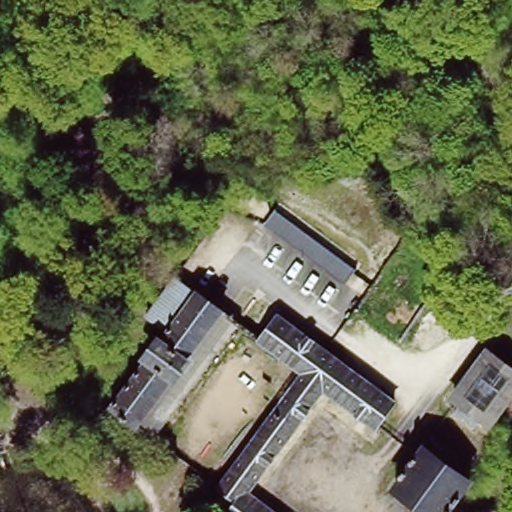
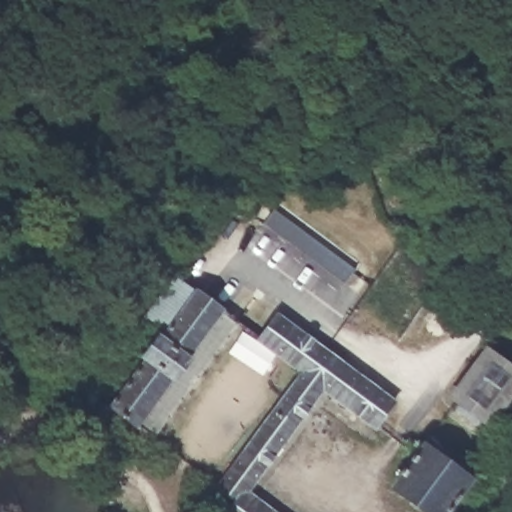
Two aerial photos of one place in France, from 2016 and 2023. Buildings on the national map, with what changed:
unchanged [(275,210),(355,270),(345,283),(265,224),(275,210)]
unchanged [(135,428),(108,408),(168,327),(150,312),(178,275),(197,288),(224,309),(135,428)]
unchanged [(420,340),(410,333),(428,305),(438,312),(420,340)]
unchanged [(242,322),(241,325),(152,442),(135,428),(224,309),(242,322)]
unchanged [(282,311),(397,397),(378,421),(328,382),(308,367),(265,333),(282,311)]
unchanged [(492,357),(497,349),(512,360),(512,400),(490,429),(458,405),(453,400),(489,355),(492,357)]
unchanged [(220,485),(308,367),(328,382),(248,489),(240,500),(220,485)]
unchanged [(452,512),(433,512),(398,485),(420,457),(425,450),(472,485),(452,512)]
unchanged [(279,512),(231,512),(240,500),(248,489),(279,512)]

